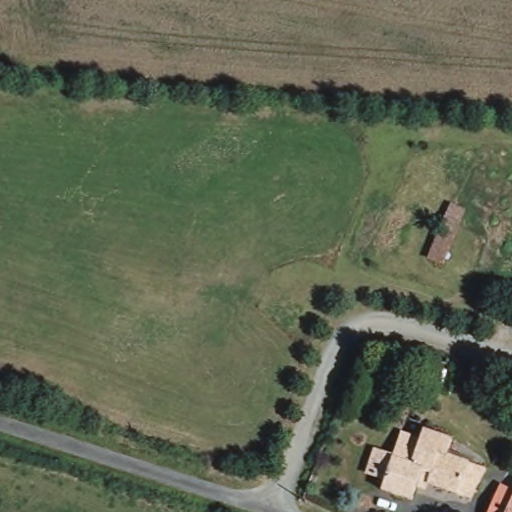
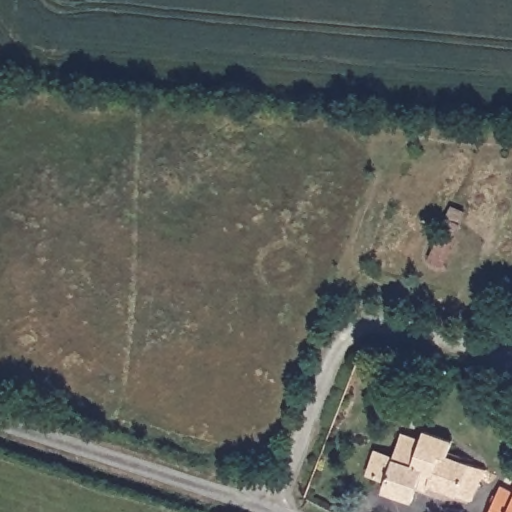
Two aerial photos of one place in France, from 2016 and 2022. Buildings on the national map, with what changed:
unchanged [(432,259),(440,230),(447,232),(450,221),(451,221),(454,212),(464,215),(461,224),(457,235),(448,264),(432,259)]
unchanged [(437,387),(424,384),(431,360),(443,363),(445,364),(437,387)]
unchanged [(425,440),(428,430),(454,441),(450,454),(486,469),(472,504),(422,484),(414,503),(384,492),(387,482),(367,474),(377,448),(397,456),(406,434),(425,440)]
unchanged [(500,491),(508,473),(512,475),(512,512),(491,512),(500,491)]

